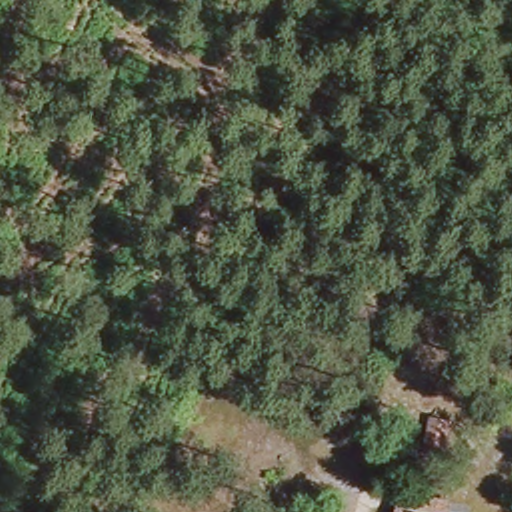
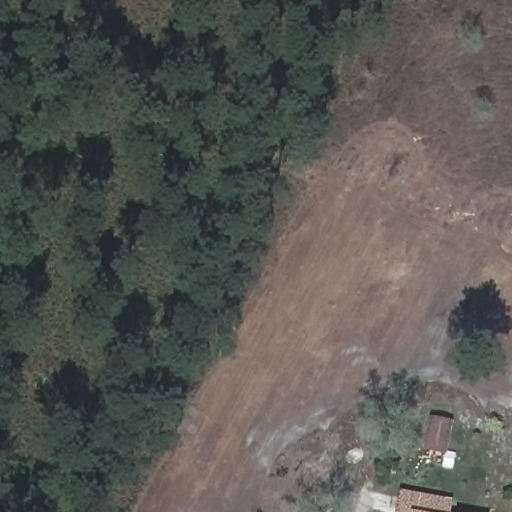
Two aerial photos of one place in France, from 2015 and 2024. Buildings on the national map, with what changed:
unchanged [(445,512),(397,512),(397,511),(402,488),(448,498),(445,512)]

